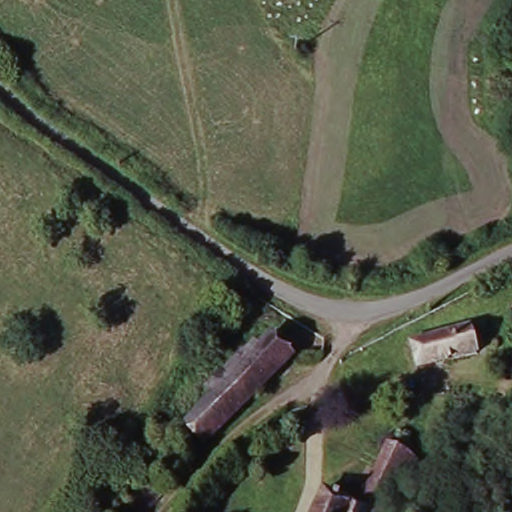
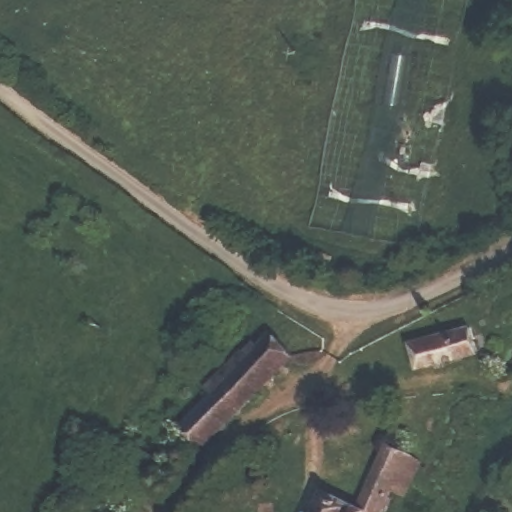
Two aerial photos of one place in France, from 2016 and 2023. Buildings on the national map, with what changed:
unchanged [(481,360),(433,372),(428,348),(474,335),(481,360)]
unchanged [(297,364),(205,451),(185,430),(215,401),(207,393),(222,379),(231,387),(236,381),(230,374),(250,356),(252,357),(257,353),(262,358),(277,343),(297,364)]
unchanged [(399,485),(387,512),(361,512),(357,510),(386,449),(422,465),(411,490),(399,485)]
unchanged [(323,495),(357,510),(361,512),(316,512),(323,495)]

